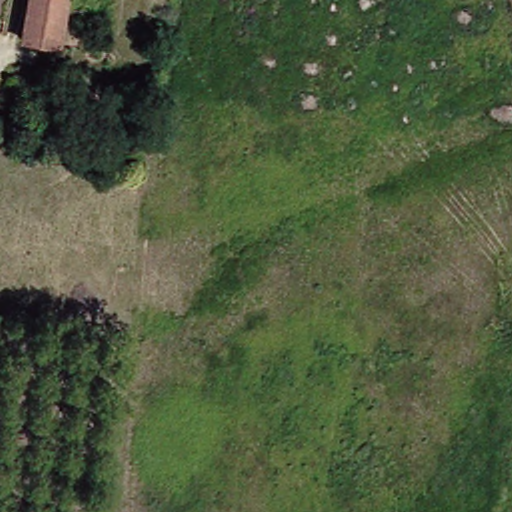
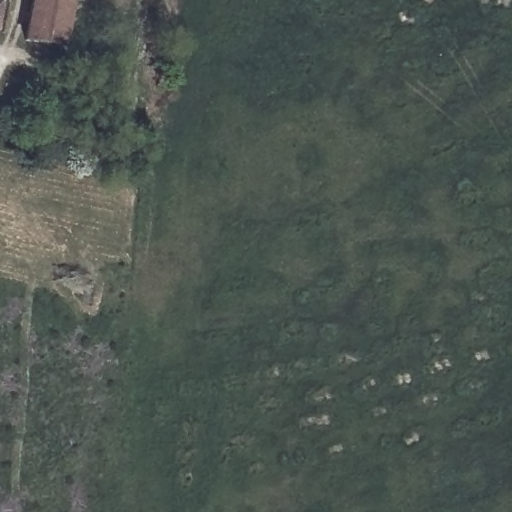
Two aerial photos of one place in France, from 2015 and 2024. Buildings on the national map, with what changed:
unchanged [(0,31),(0,0),(6,0),(0,31)]
unchanged [(35,41),(42,0),(77,0),(69,46),(35,41)]

